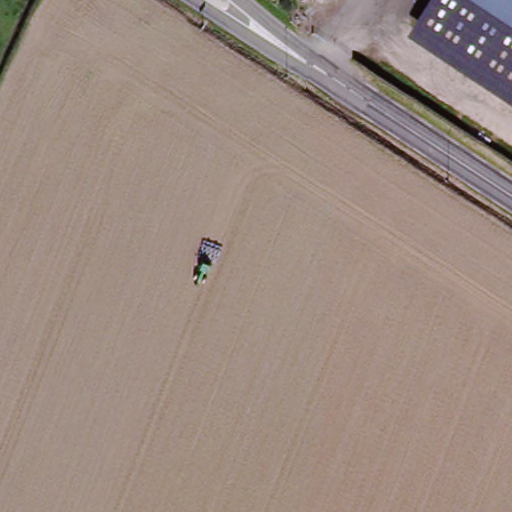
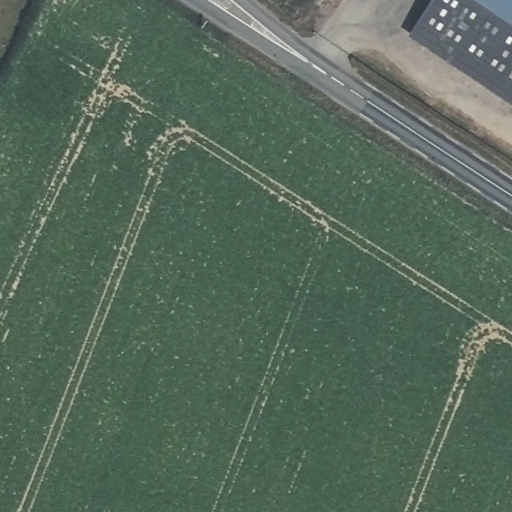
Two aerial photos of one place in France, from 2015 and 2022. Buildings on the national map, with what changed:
unchanged [(419,23),(435,0),(479,0),(512,22),(512,84),(419,23)]
unchanged [(479,0),(512,0),(512,22),(479,0)]

